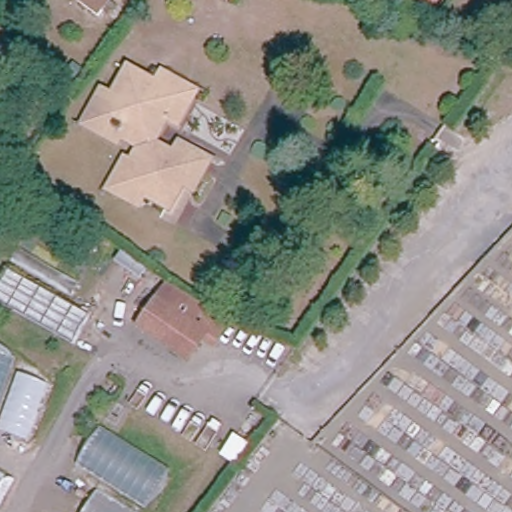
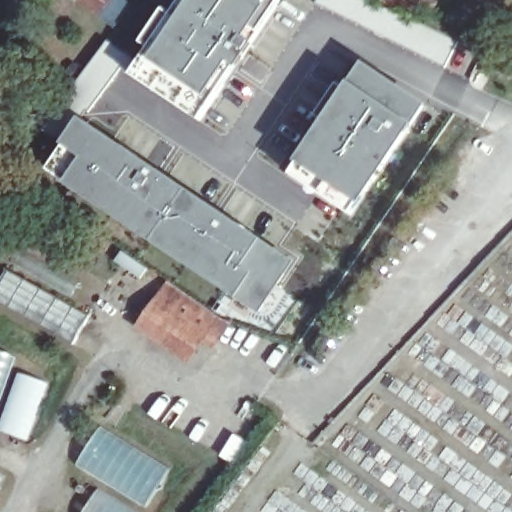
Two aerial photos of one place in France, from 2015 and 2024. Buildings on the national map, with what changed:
unchanged [(73,6),(77,0),(116,0),(96,23),(73,6)]
new [(137,44),(162,7),(170,12),(178,0),(281,0),(239,64),(198,119),(187,111),(189,107),(191,109),(197,100),(190,95),(187,92),(165,77),(158,86),(162,89),(159,94),(129,75),(140,56),(145,49),(137,44)]
demolished [(230,0),(226,6),(215,0),(230,0)]
new [(435,0),(423,27),(378,5),(380,0),(435,0)]
new [(107,39),(120,57),(124,62),(82,117),(79,115),(59,102),(107,39)]
new [(341,87),(361,60),(425,103),(393,156),(359,206),(294,160),(341,87)]
demolished [(164,211),(139,196),(110,178),(122,161),(134,143),(123,137),(128,130),(104,114),(116,96),(131,71),(157,87),(194,109),(178,132),(163,123),(147,148),(170,162),(187,173),(179,186),(164,211)]
new [(82,117),(209,202),(293,261),(258,315),(62,183),(45,171),(60,145),(79,115),(82,117)]
new [(294,160),(359,206),(350,218),(286,173),(294,160)]
unchanged [(8,269),(90,315),(73,344),(0,303),(0,282),(8,269)]
unchanged [(201,339),(188,358),(140,326),(170,280),(218,316),(229,317),(219,332),(211,346),(201,339)]
unchanged [(16,358),(0,407),(0,352),(16,358)]
new [(19,373),(46,383),(26,440),(0,430),(0,429),(19,373)]
unchanged [(96,487),(72,466),(97,428),(170,473),(143,512),(81,512),(96,487)]
unchanged [(18,481),(1,508),(0,508),(0,470),(18,481)]

